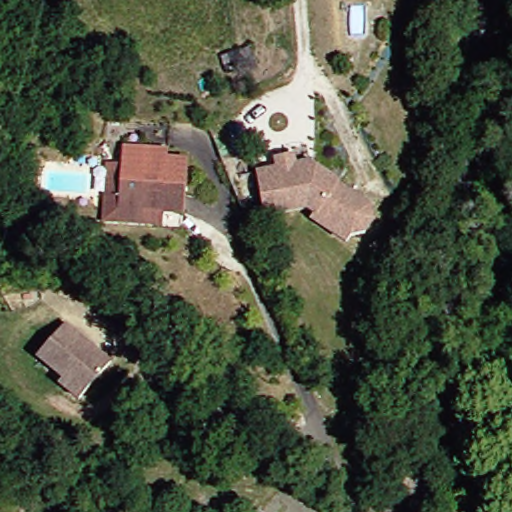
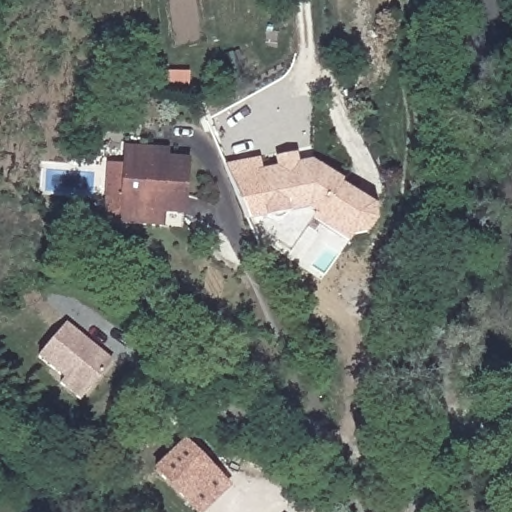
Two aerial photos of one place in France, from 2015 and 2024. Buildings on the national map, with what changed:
unchanged [(157,151),(176,152),(175,160),(190,161),(187,216),(166,215),(165,230),(106,226),(108,203),(111,167),(127,168),(129,149),(157,151)]
unchanged [(339,181),(337,183),(372,205),(375,218),(367,230),(354,233),(350,240),(315,218),(318,213),(309,207),(288,211),(288,213),(287,214),(286,215),(286,216),(284,217),(282,218),(281,218),(280,219),(278,219),(277,219),(276,219),(275,219),(273,219),(272,218),(270,217),(268,217),(267,216),(258,172),(278,168),(277,159),(293,155),(296,165),(311,162),(339,181)]
unchanged [(71,391),(75,386),(41,359),(69,323),(116,361),(87,396),(84,400),(71,391)]
new [(185,439),(232,486),(206,512),(194,512),(154,469),(185,439)]

